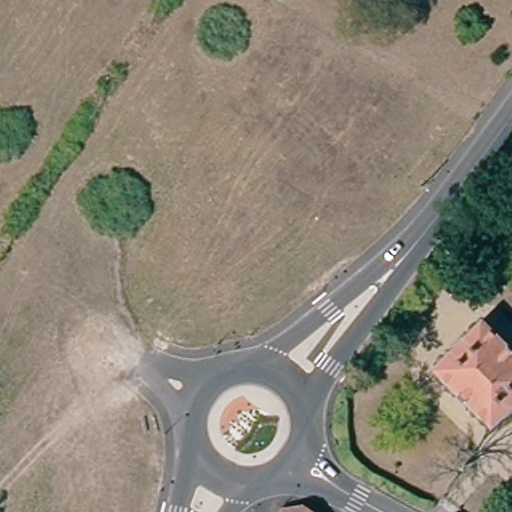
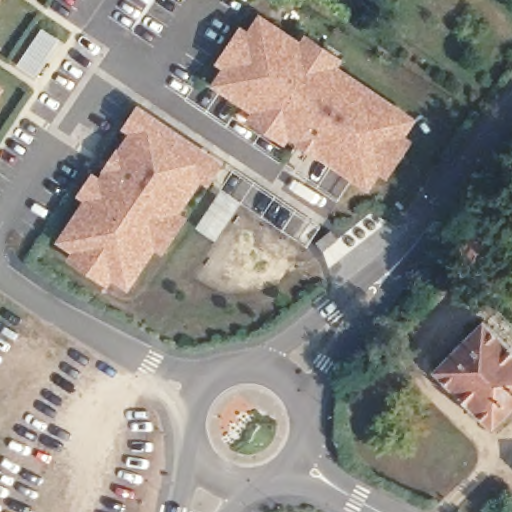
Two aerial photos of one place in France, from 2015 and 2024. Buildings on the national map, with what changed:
new [(386,179),(376,173),(365,188),(314,153),(300,143),(288,135),(281,145),(248,123),(255,113),(215,86),(226,70),(216,63),(239,30),(249,37),(259,22),(299,49),(306,39),(339,61),(332,71),(409,124),(399,139),(409,145),(386,179)]
new [(42,33),(56,43),(33,76),(19,66),(42,33)]
new [(88,200),(78,194),(89,177),(99,184),(108,171),(118,157),(133,133),(123,127),(134,110),(144,117),(209,161),(219,168),(208,184),(198,178),(173,215),(183,222),(162,252),(152,245),(125,286),(109,275),(102,285),(69,262),(76,253),(60,242),(88,200)]
unchanged [(512,409),(489,432),(429,374),(478,321),(512,355),(512,409)]
demolished [(307,512),(293,512),(304,510),(307,512)]

